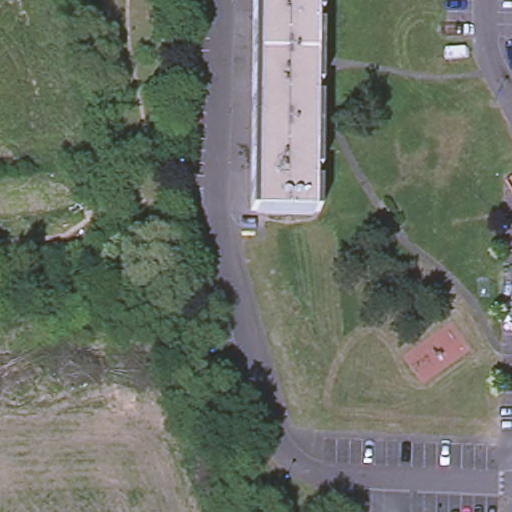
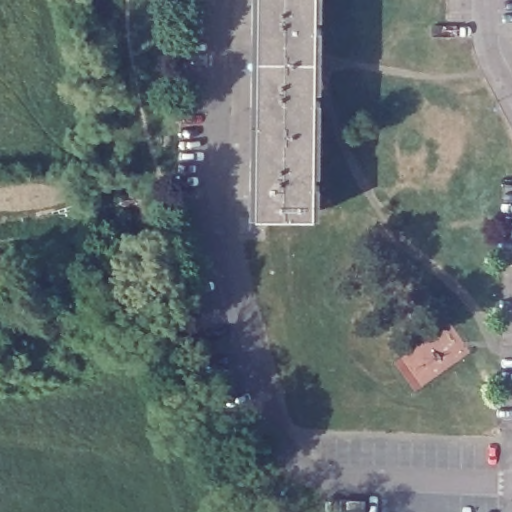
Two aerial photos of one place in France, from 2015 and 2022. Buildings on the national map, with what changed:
unchanged [(314,214),(258,213),(260,0),(317,0),(314,214)]

